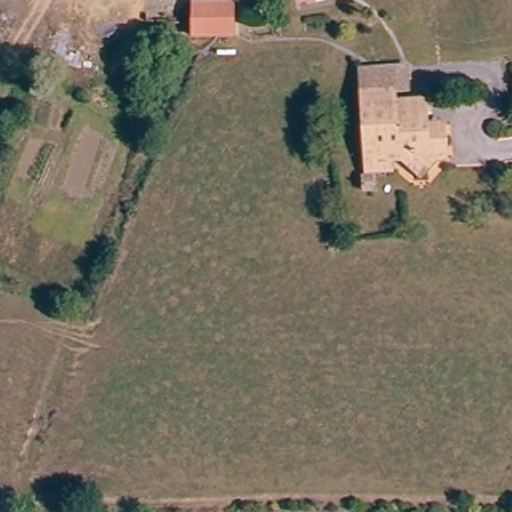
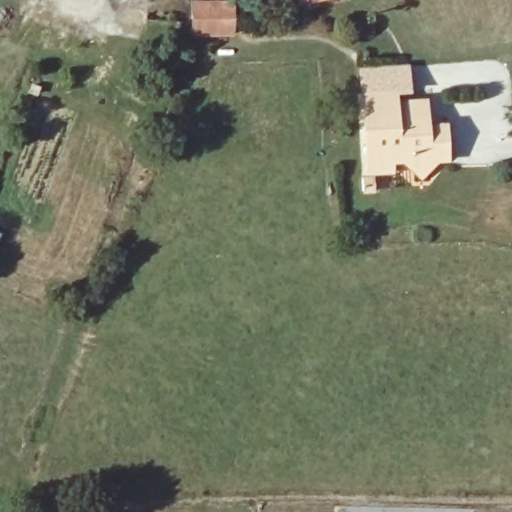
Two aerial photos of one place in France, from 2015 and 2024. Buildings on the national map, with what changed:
unchanged [(303,1),(303,0),(311,0),(303,1)]
unchanged [(237,33),(202,35),(196,36),(194,22),(193,10),(236,8),(237,33)]
unchanged [(363,88),(362,65),(412,62),(412,85),(394,86),(363,88)]
unchanged [(403,157),(386,158),(386,169),(367,170),(367,150),(366,132),(371,132),(370,110),(363,110),(363,88),(394,86),(395,102),(429,100),(431,124),(446,122),(447,147),(448,155),(437,155),(427,168),(427,180),(413,181),(412,169),(403,157)]

